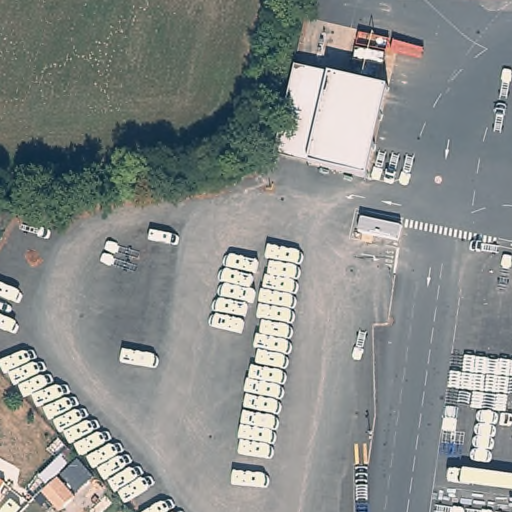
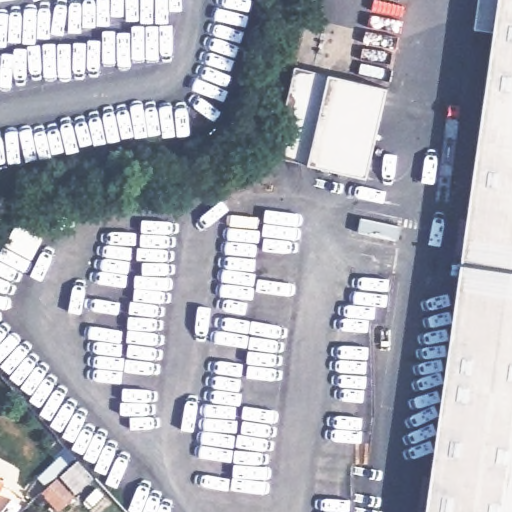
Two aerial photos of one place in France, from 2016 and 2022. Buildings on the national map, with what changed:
new [(495,29),(475,29),(479,0),(512,0),(512,512),(427,512),(462,262),(495,29)]
unchanged [(331,77),(389,90),(368,181),(310,166),(275,156),(297,67),(331,77)]
unchanged [(6,484),(0,496),(0,481),(6,484)]

